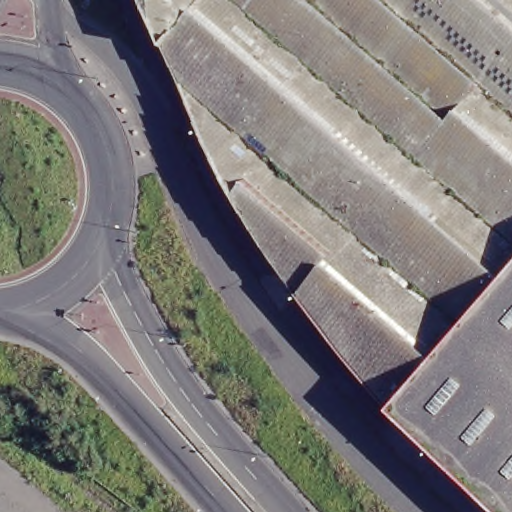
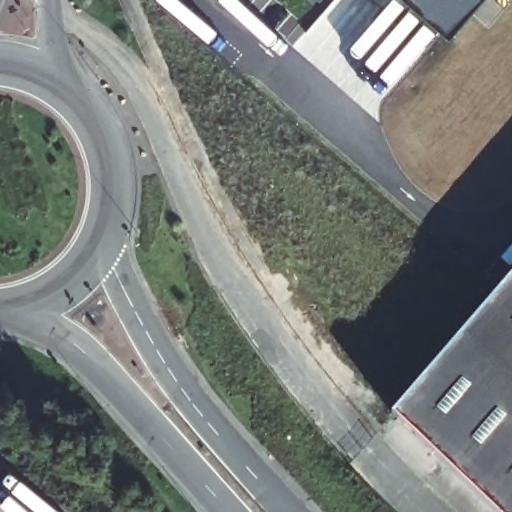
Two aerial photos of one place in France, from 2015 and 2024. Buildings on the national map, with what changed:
demolished [(396,412),(387,401),(345,346),(325,321),(313,306),(302,290),(290,271),(277,250),(255,214),(225,164),(207,127),(174,55),(149,0),(512,0),(512,280),(465,334),(396,412)]
new [(399,0),(486,0),(448,42),(399,0)]
unchanged [(420,435),(396,412),(465,334),(512,280),(512,512),(499,512),(420,435)]

